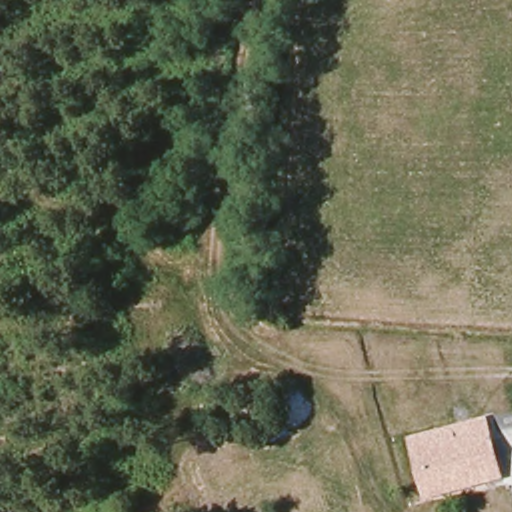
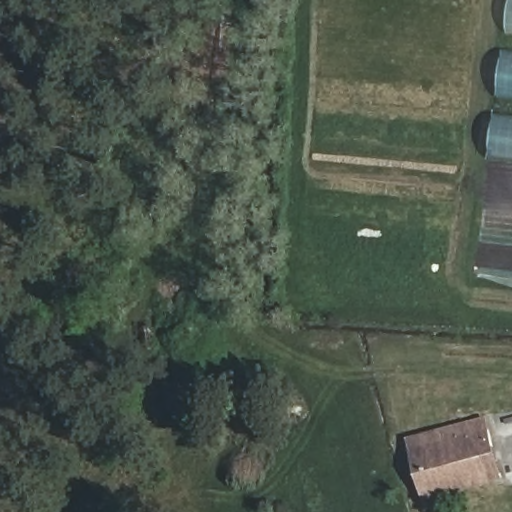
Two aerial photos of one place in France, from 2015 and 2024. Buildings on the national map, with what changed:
new [(488,159),(512,0),(512,162),(488,159)]
unchanged [(495,477),(419,495),(406,449),(481,429),(495,477)]

